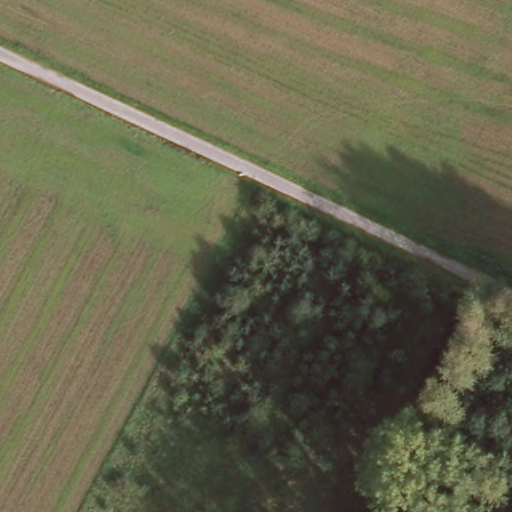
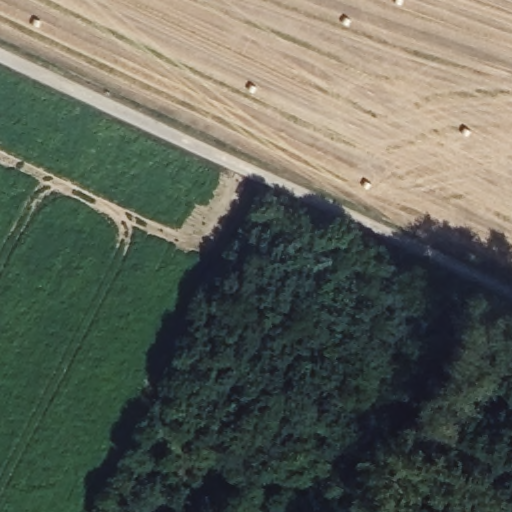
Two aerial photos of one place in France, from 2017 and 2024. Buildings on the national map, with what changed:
unchanged [(355,432),(367,431),(370,453),(357,455),(355,432)]

